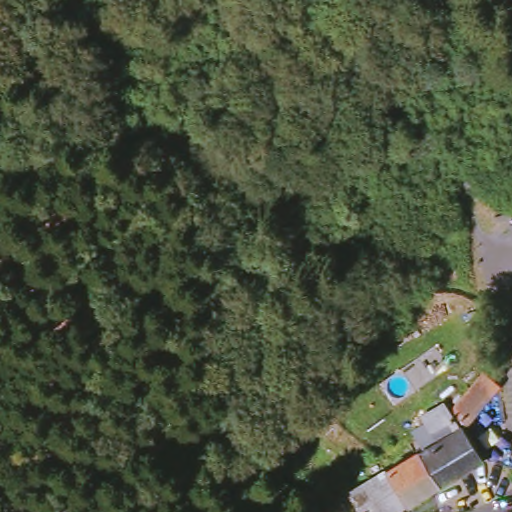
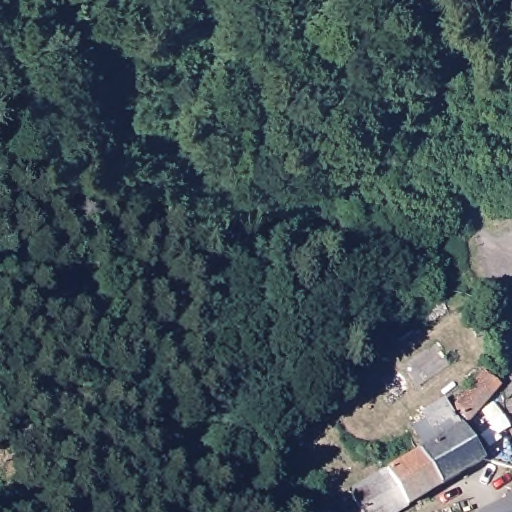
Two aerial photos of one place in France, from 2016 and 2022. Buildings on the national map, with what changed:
unchanged [(496,381),(464,418),(449,406),(481,368),(496,381)]
unchanged [(465,421),(487,461),(412,507),(391,465),(465,421)]

